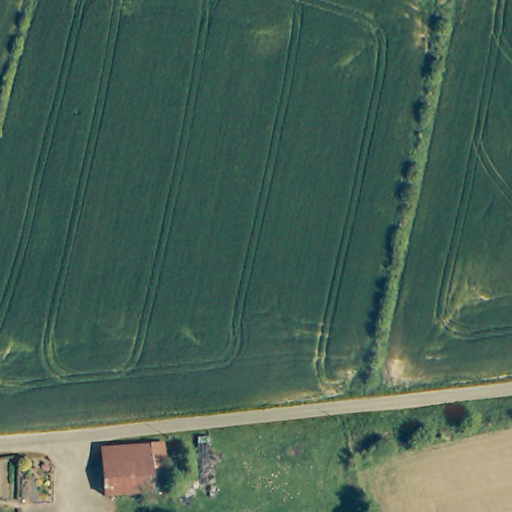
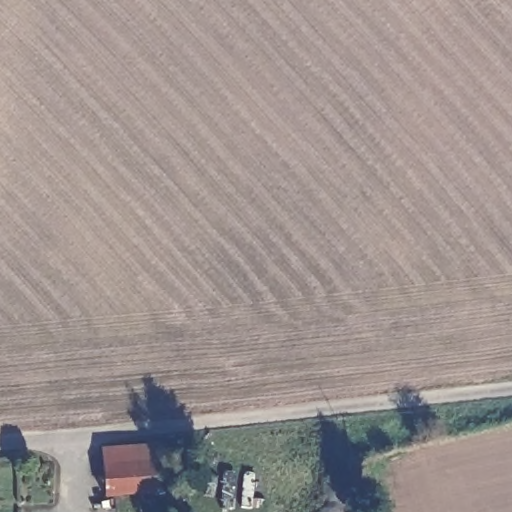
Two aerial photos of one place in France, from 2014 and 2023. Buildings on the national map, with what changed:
unchanged [(109,442),(160,440),(160,457),(160,491),(111,492),(110,459),(109,442)]

